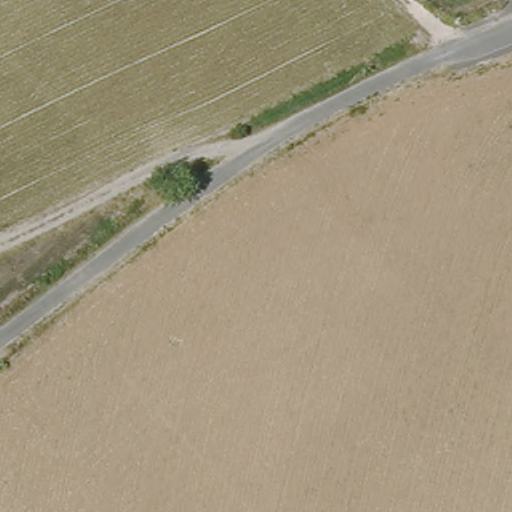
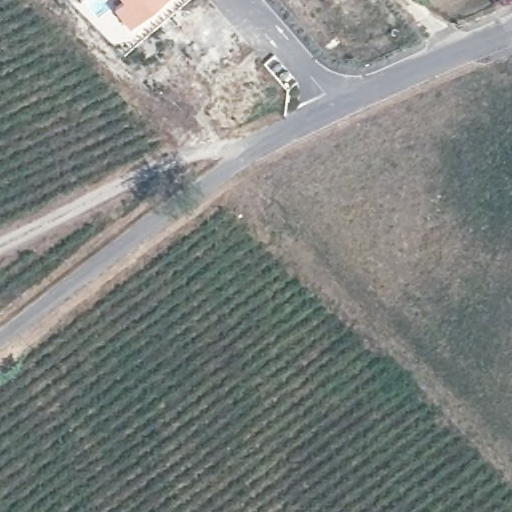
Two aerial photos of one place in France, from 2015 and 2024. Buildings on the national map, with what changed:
new [(127,26),(113,8),(120,0),(160,0),(127,26)]

